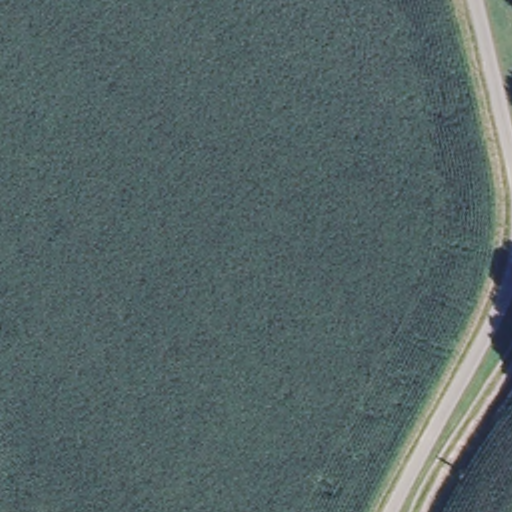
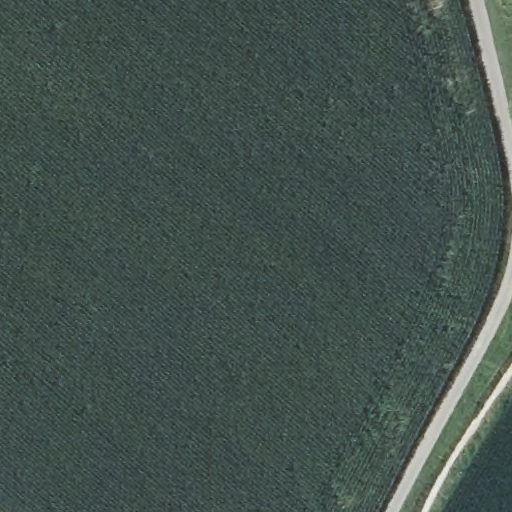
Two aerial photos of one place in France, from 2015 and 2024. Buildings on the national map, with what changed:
[]

